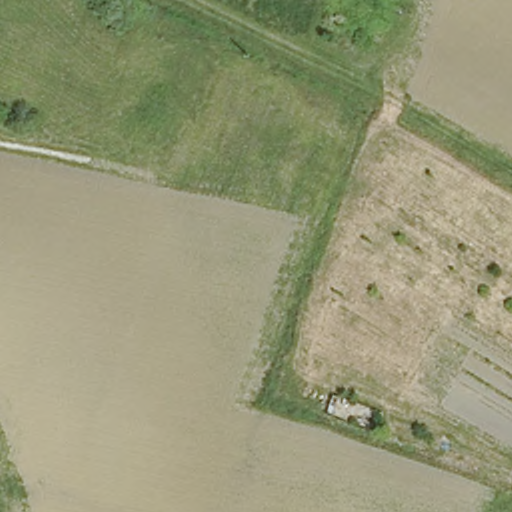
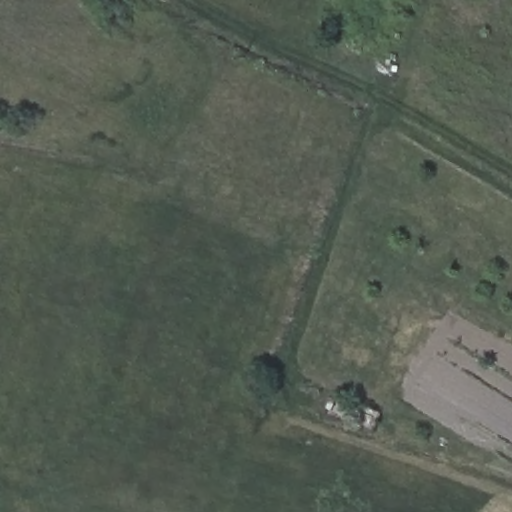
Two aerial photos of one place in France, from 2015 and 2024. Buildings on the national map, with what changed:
[]

